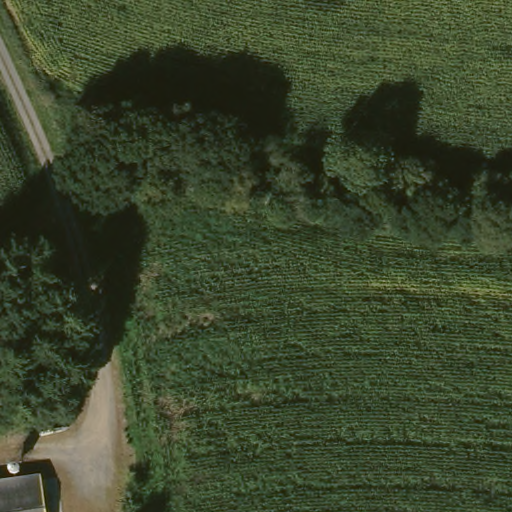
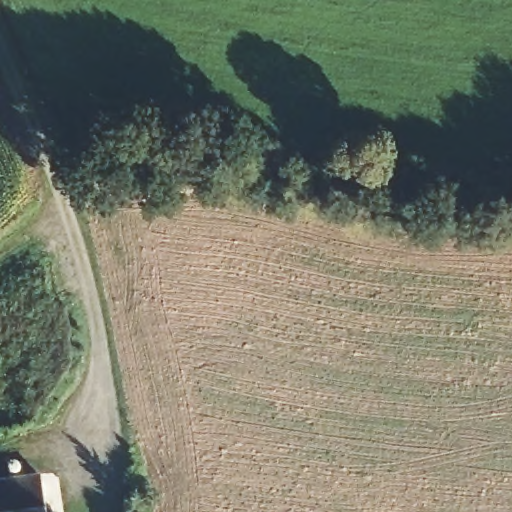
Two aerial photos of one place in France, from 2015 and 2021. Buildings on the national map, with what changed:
unchanged [(47,512),(0,512),(0,477),(40,471),(47,512)]

